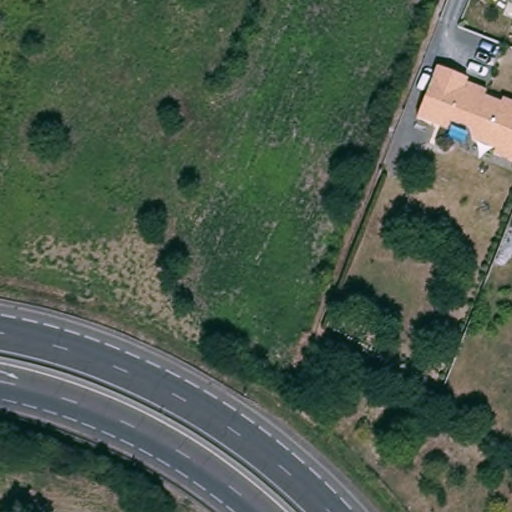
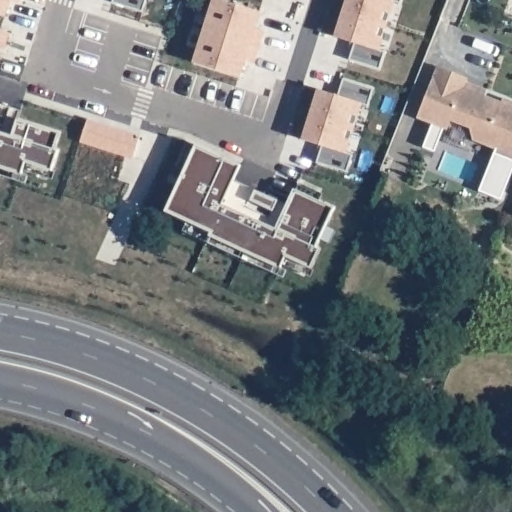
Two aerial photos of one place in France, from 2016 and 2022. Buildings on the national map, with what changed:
new [(0,0),(11,0),(6,15),(0,12),(0,0)]
new [(112,1),(112,0),(145,0),(142,10),(112,1)]
new [(240,76),(193,61),(212,0),(224,0),(261,11),(240,76)]
new [(379,67),(351,59),(356,41),(335,35),(345,0),(401,0),(401,2),(394,1),(380,50),(384,51),(379,67)]
unchanged [(489,85),(486,91),(503,98),(505,94),(512,97),(512,157),(494,149),(496,145),(474,135),(471,123),(452,115),(448,124),(418,111),(440,60),(470,73),(468,77),(489,85)]
new [(372,87),(367,105),(361,103),(347,152),(351,154),(346,170),(318,160),(322,145),(302,138),(317,89),(338,95),(342,79),(372,87)]
new [(53,148),(58,150),(51,170),(24,162),(21,174),(0,167),(0,133),(13,136),(18,119),(58,131),(53,148)]
new [(81,141),(88,119),(139,135),(132,158),(81,141)]
new [(295,189),(333,205),(315,245),(319,247),(311,265),(286,255),(281,266),(210,235),(213,231),(166,210),(195,144),(240,165),(223,203),(277,227),(295,189)]

